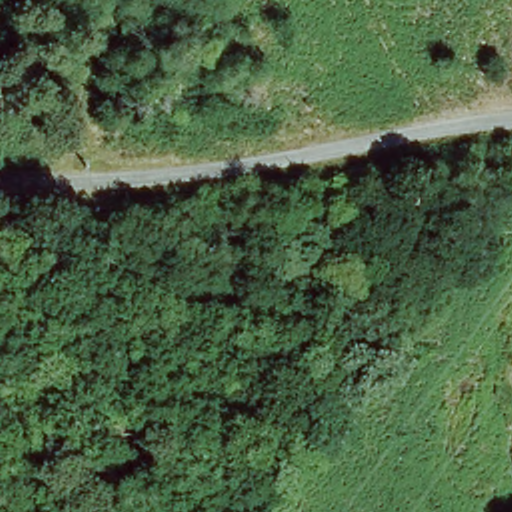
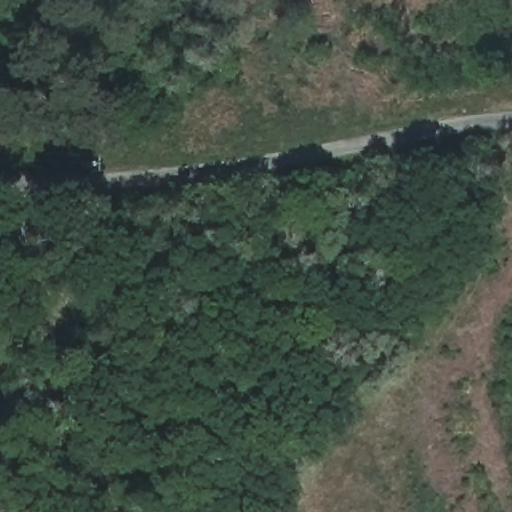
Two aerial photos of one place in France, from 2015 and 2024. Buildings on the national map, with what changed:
[]

